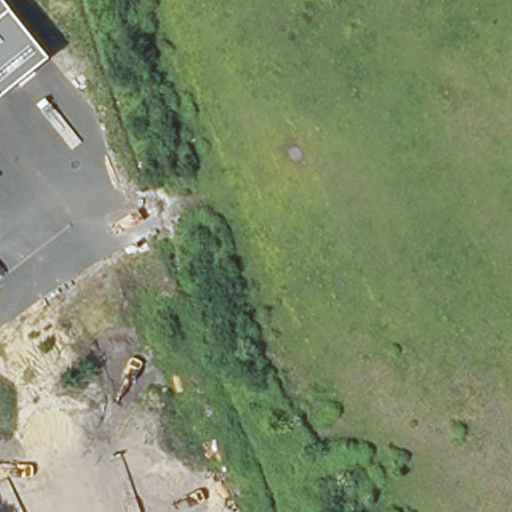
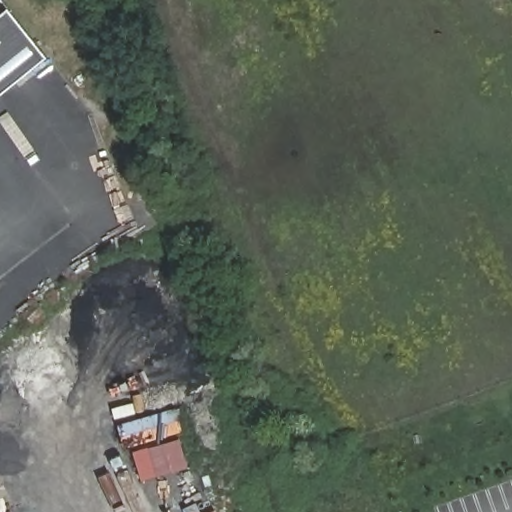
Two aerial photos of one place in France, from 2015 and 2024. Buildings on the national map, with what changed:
unchanged [(0,79),(0,0),(5,0),(42,45),(0,79)]
new [(134,452),(180,439),(189,468),(142,481),(134,452)]

